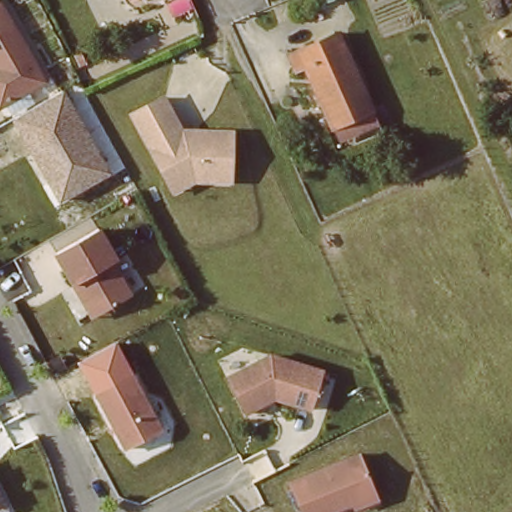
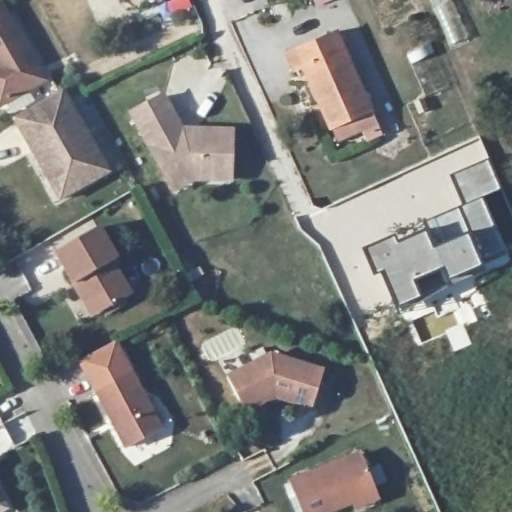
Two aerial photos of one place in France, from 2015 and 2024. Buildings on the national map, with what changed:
unchanged [(0,99),(0,8),(39,76),(0,99)]
unchanged [(341,35),(378,113),(336,131),(309,69),(299,74),(291,58),(341,35)]
unchanged [(47,100),(62,91),(108,172),(61,200),(50,181),(57,178),(40,149),(34,153),(14,118),(47,100)]
unchanged [(228,130),(229,186),(191,183),(171,197),(122,116),(158,93),(179,129),(228,130)]
new [(479,135),(502,188),(484,196),(432,215),(428,190),(429,189),(420,163),(479,135)]
new [(398,230),(400,235),(426,226),(423,219),(427,217),(432,215),(484,196),(508,253),(453,281),(446,265),(417,278),(424,295),(400,305),(384,270),(376,273),(365,245),(398,230)]
unchanged [(91,231),(109,263),(104,266),(123,299),(94,315),(76,282),(67,287),(49,255),(91,231)]
new [(92,395),(75,363),(111,345),(128,377),(92,395)]
unchanged [(269,352),(319,369),(308,406),(271,394),(242,408),(224,374),(269,352)]
unchanged [(128,377),(156,433),(121,451),(92,395),(128,377)]
unchanged [(360,460),(374,496),(350,506),(351,509),(344,512),(297,512),(288,488),(360,460)]
unchanged [(0,509),(0,506),(1,508),(0,509)]

